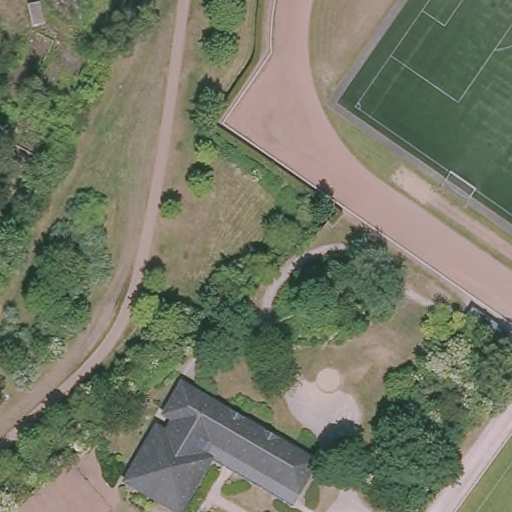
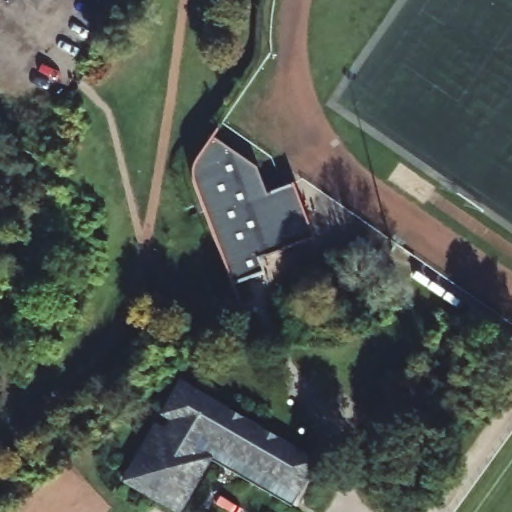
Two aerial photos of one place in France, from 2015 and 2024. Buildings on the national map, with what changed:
new [(257,167),(265,194),(293,184),(313,237),(259,257),(264,272),(232,283),(193,180),(192,170),(194,162),(211,137),(257,167)]
unchanged [(179,505),(124,474),(181,375),(316,453),(298,484),(217,437),(209,452),(179,505)]
unchanged [(298,484),(291,498),(209,452),(217,437),(298,484)]

